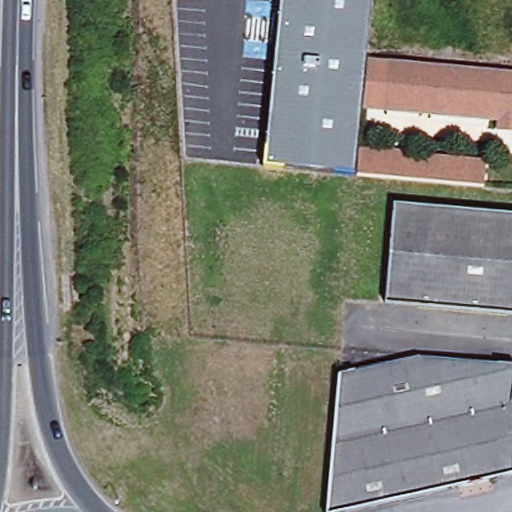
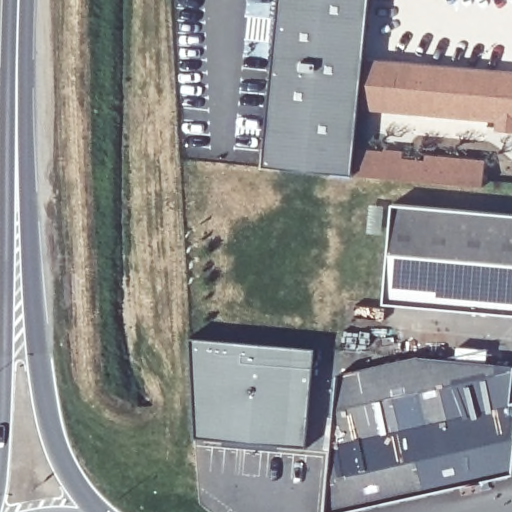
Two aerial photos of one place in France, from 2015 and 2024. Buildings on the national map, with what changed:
unchanged [(365,59),(360,109),(354,175),(264,167),(280,0),(371,0),(365,59)]
unchanged [(383,111),(360,109),(365,59),(388,62),(383,111)]
unchanged [(502,131),(502,121),(435,115),(383,111),(388,62),(391,62),(512,73),(512,132),(502,131)]
unchanged [(427,156),(486,161),(484,186),(359,174),(359,173),(358,172),(357,172),(359,149),(384,151),(385,149),(404,150),(404,162),(426,164),(427,156)]
unchanged [(512,215),(512,312),(386,301),(395,204),(512,215)]
new [(316,347),(307,445),(196,438),(193,336),(316,347)]
unchanged [(334,512),(325,512),(338,374),(420,356),(512,364),(512,377),(509,401),(512,401),(512,471),(410,495),(334,512)]

